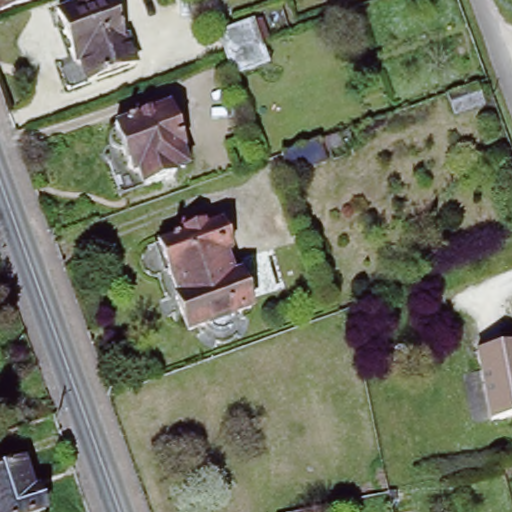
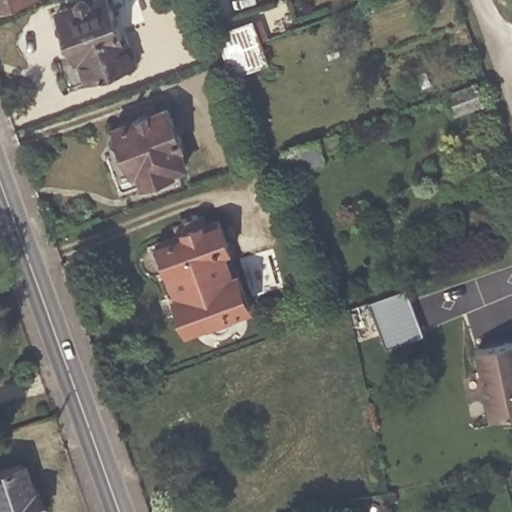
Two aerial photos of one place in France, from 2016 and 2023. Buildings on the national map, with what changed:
unchanged [(0,7),(0,0),(19,0),(0,7)]
unchanged [(121,42),(125,40),(134,65),(88,83),(78,57),(71,60),(55,15),(94,0),(106,0),(121,42)]
unchanged [(220,29),(255,16),(261,35),(272,62),(237,74),(227,47),(220,29)]
unchanged [(453,106),(447,90),(480,77),(488,100),(456,114),(453,106)]
unchanged [(188,140),(181,142),(189,162),(177,168),(180,173),(147,186),(139,167),(130,171),(121,148),(116,147),(113,142),(115,135),(118,132),(115,124),(148,112),(147,107),(158,103),(160,106),(174,101),(188,140)]
unchanged [(279,150),(335,128),(341,144),(345,154),(290,175),(279,150)]
unchanged [(205,225),(221,220),(254,305),(231,314),(231,324),(225,328),(220,330),(214,327),(208,322),(190,330),(158,242),(181,234),(177,224),(202,215),(205,225)]
new [(407,287),(424,334),(386,347),(370,300),(407,287)]
unchanged [(512,339),(512,412),(494,416),(485,367),(480,347),(512,339)]
unchanged [(38,487),(45,485),(52,503),(30,512),(0,512),(0,472),(28,462),(38,487)]

